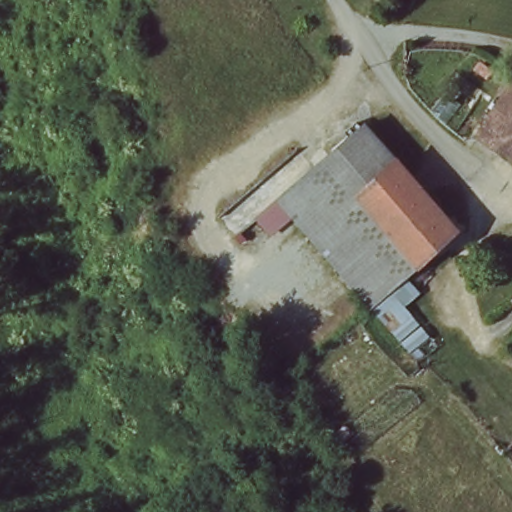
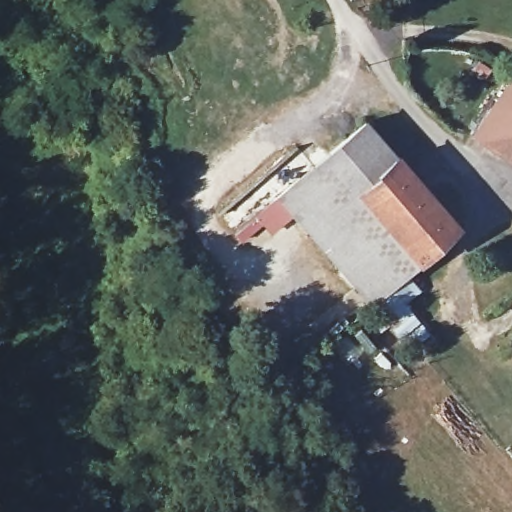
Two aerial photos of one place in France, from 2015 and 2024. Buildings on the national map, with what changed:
unchanged [(478,146),(512,92),(512,135),(501,152),(490,165),(478,146)]
unchanged [(337,151),(365,127),(456,225),(395,286),(378,305),(282,203),(337,151)]
unchanged [(512,135),(512,159),(501,152),(512,135)]

